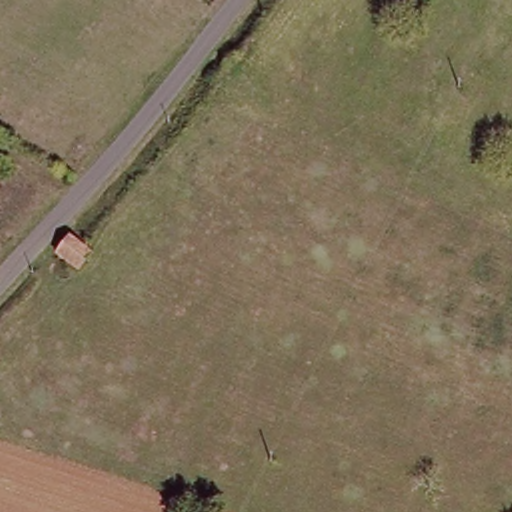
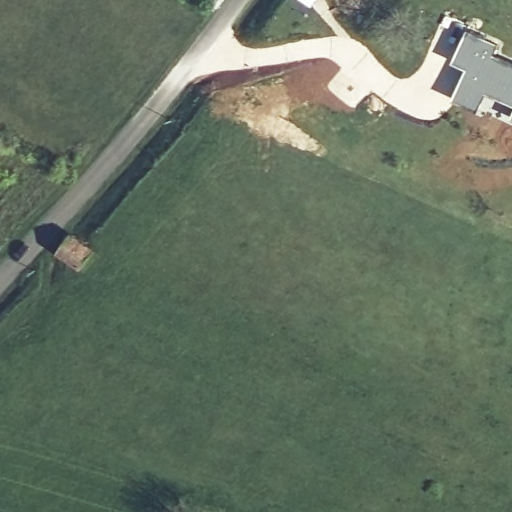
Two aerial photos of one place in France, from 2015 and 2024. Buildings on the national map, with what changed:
new [(453,61),(467,31),(495,44),(490,54),(512,65),(512,105),(483,91),(475,109),(452,98),(460,80),(467,68),(453,61)]
new [(512,113),(512,119),(510,118),(512,113)]
unchanged [(59,257),(62,236),(87,241),(83,261),(59,257)]

